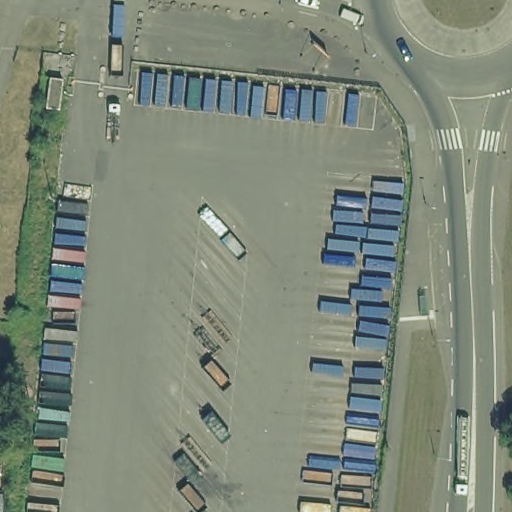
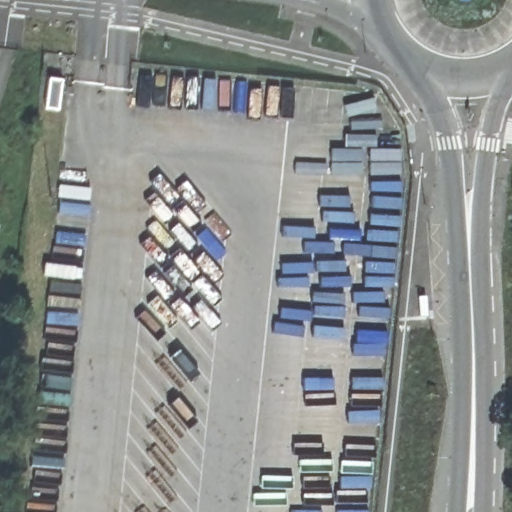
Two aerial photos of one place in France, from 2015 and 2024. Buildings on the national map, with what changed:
unchanged [(49,77),(62,79),(58,108),(46,107),(49,77)]

